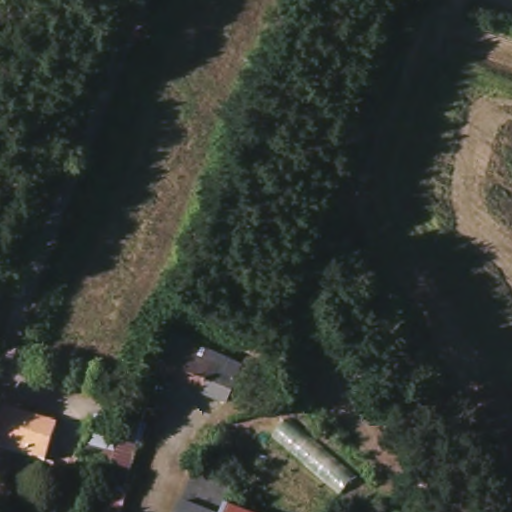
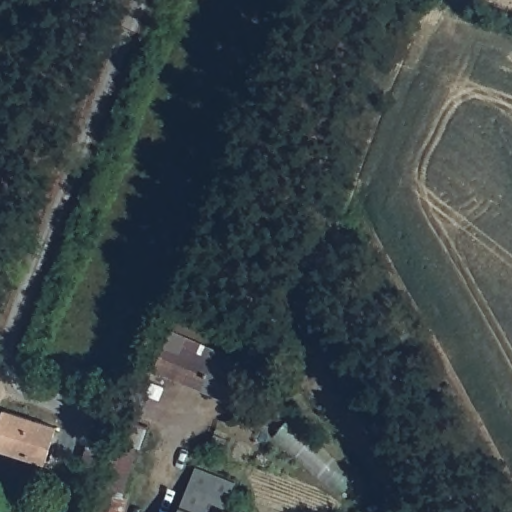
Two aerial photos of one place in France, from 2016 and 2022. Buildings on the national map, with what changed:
unchanged [(262,392),(240,385),(235,401),(160,372),(175,327),(195,336),(192,345),(211,351),(215,342),(234,351),(227,371),(239,373),(244,366),(267,372),(262,392)]
unchanged [(47,467),(0,450),(0,434),(10,409),(63,427),(47,467)]
unchanged [(83,468),(97,427),(124,433),(126,422),(149,428),(124,512),(96,512),(107,475),(83,468)]
unchanged [(191,489),(199,468),(236,483),(227,501),(224,512),(177,512),(186,487),(191,489)]

